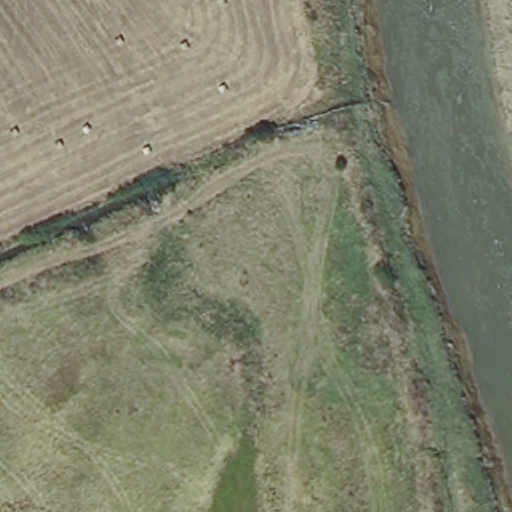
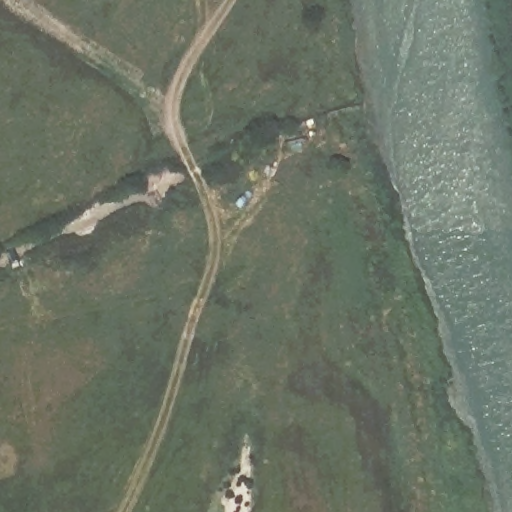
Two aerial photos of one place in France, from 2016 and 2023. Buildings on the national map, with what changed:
[]

